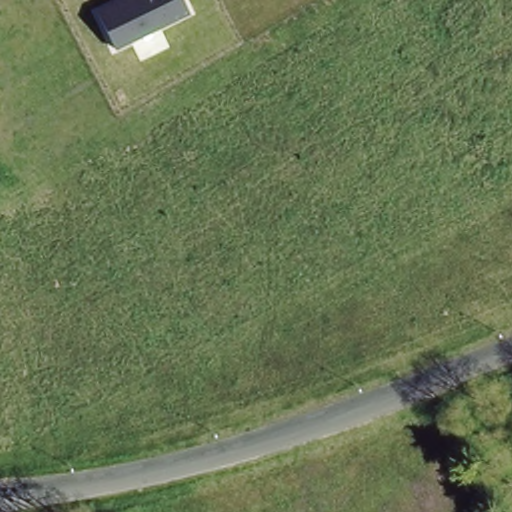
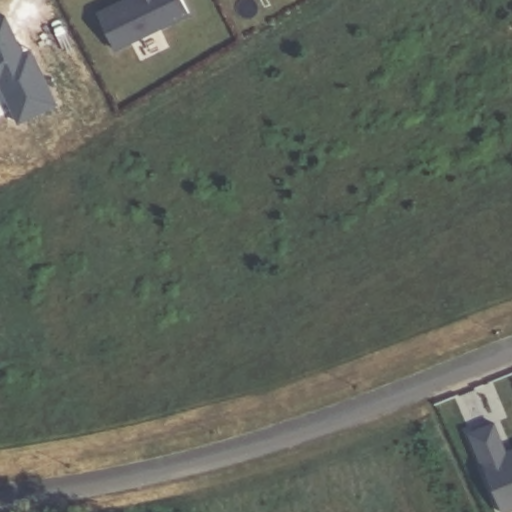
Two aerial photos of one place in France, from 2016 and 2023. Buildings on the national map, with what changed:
unchanged [(98,11),(121,0),(184,0),(189,13),(115,50),(98,11)]
new [(21,53),(29,50),(33,59),(53,105),(19,122),(0,84),(0,19),(5,16),(21,53)]
new [(512,450),(512,509),(504,512),(501,512),(469,433),(493,424),(505,452),(512,450)]

